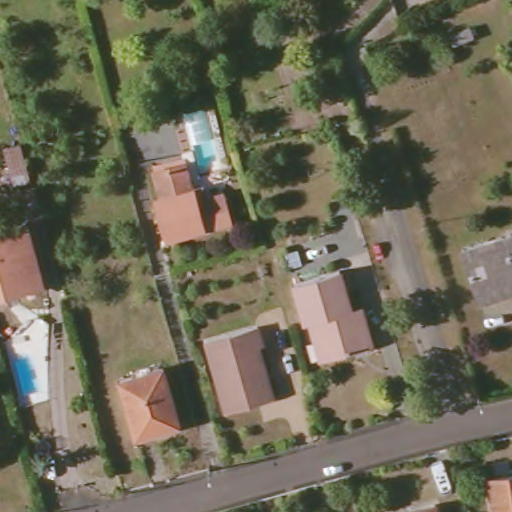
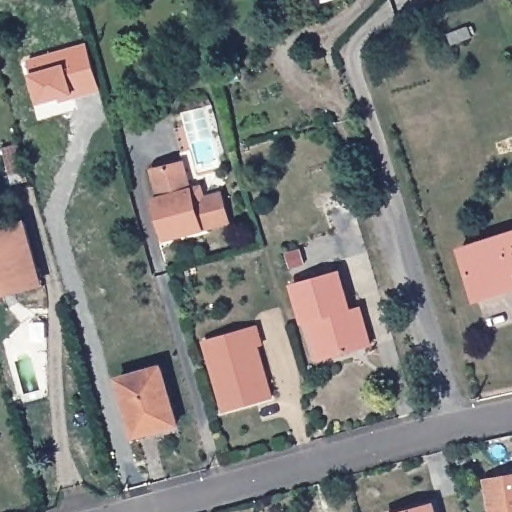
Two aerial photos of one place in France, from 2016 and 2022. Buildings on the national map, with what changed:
new [(82,46),(95,91),(82,95),(67,99),(66,96),(35,105),(22,62),(70,50),(82,46)]
unchanged [(184,158),(192,185),(201,182),(205,194),(222,189),(231,222),(165,239),(154,199),(162,197),(154,166),(184,158)]
unchanged [(42,281),(0,292),(0,224),(25,218),(38,268),(42,281)]
unchanged [(478,300),(462,251),(512,234),(512,289),(478,300)]
unchanged [(348,313),(352,325),(357,323),(362,327),(369,349),(327,361),(321,342),(315,344),(309,323),(304,325),(292,286),(337,274),(348,313)]
unchanged [(262,347),(257,347),(265,375),(263,376),(265,382),(267,381),(272,400),(230,412),(221,382),(218,383),(207,341),(256,327),(262,347)]
unchanged [(177,423),(136,436),(119,378),(161,367),(177,423)]
unchanged [(488,480),(512,476),(512,512),(493,512),(488,480)]
unchanged [(434,512),(409,512),(432,506),(434,512)]

